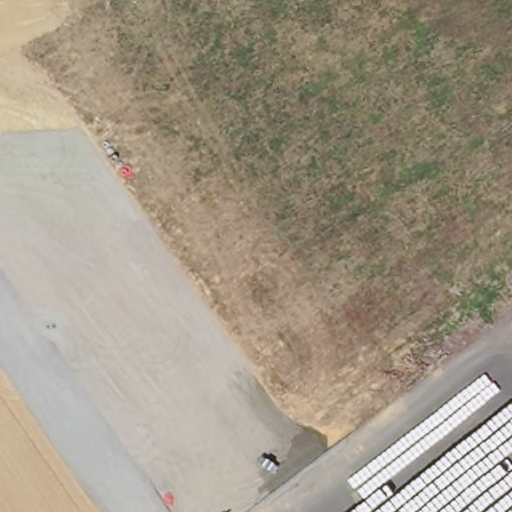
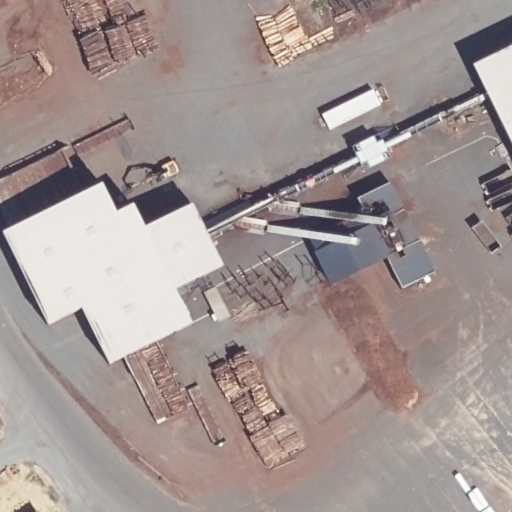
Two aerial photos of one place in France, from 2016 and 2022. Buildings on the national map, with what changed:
new [(472,65),(512,45),(512,147),(472,65)]
new [(434,272),(402,287),(388,257),(330,285),(315,252),(370,226),(358,199),(391,182),(434,272)]
new [(223,267),(174,291),(192,326),(108,367),(81,310),(46,326),(2,233),(102,185),(115,214),(133,206),(143,227),(191,204),(223,267)]

